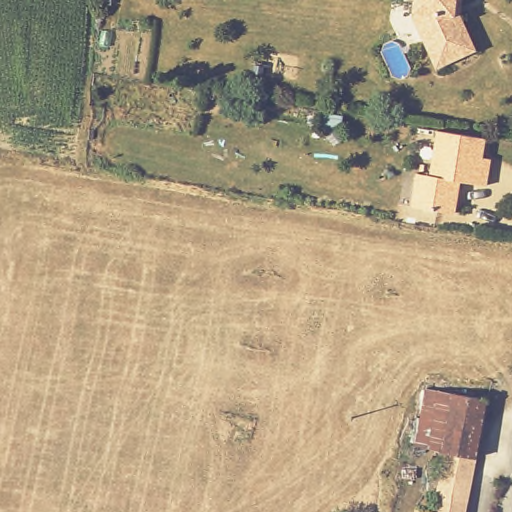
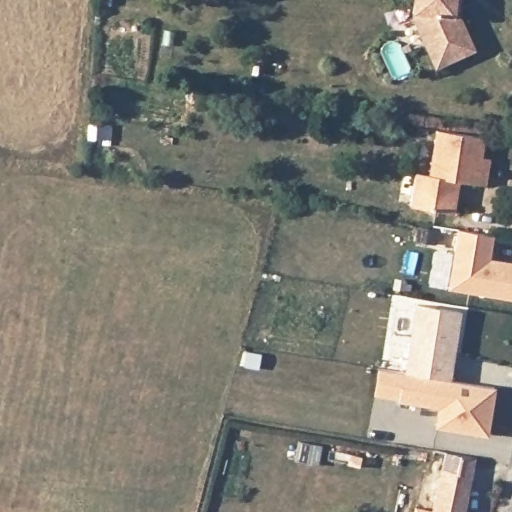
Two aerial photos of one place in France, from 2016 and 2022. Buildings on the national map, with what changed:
unchanged [(460,10),(464,10),(479,47),(438,64),(417,10),(417,0),(460,0),(460,10)]
unchanged [(408,170),(420,171),(433,172),(437,126),(484,130),(482,150),(491,150),(489,176),(464,175),(461,207),(418,205),(405,204),(408,170)]
new [(497,235),(493,258),(512,262),(512,300),(449,290),(458,230),(497,235)]
new [(439,408),(399,402),(399,399),(374,395),(379,367),(405,372),(416,303),(463,310),(452,380),(496,387),(488,436),(436,427),(439,408)]
unchanged [(425,512),(427,501),(432,501),(440,453),(446,455),(481,459),(473,512),(425,512)]

